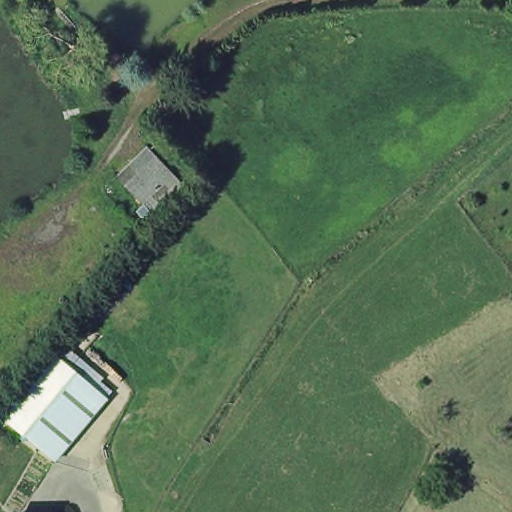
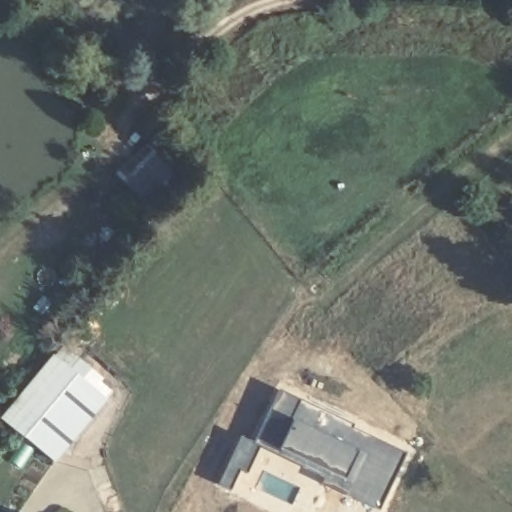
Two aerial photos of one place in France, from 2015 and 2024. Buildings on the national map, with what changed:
unchanged [(157,210),(143,195),(120,170),(149,142),(172,167),(186,182),(157,210)]
unchanged [(0,413),(53,352),(110,403),(48,462),(0,420),(0,413)]
new [(317,406),(407,452),(379,512),(378,512),(321,482),(322,478),(253,442),(278,389),(317,406)]
new [(240,436),(258,445),(245,474),(240,472),(230,490),(218,484),(240,436)]

